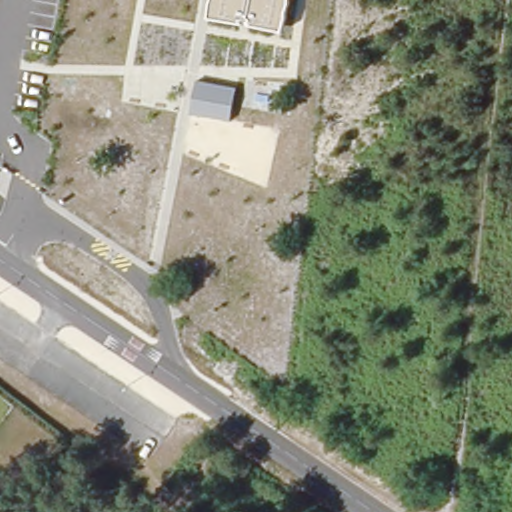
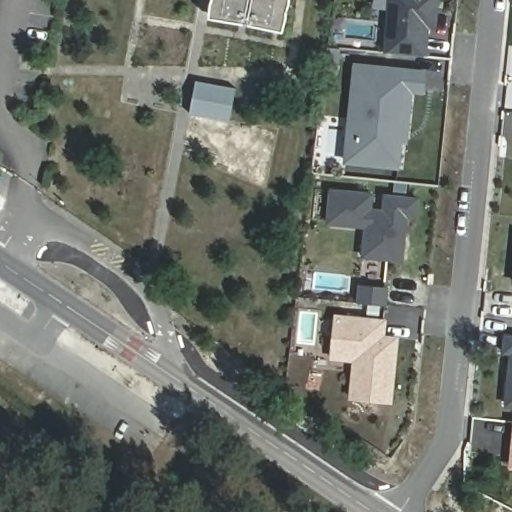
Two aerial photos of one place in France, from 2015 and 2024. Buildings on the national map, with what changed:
unchanged [(208,17),(212,0),(290,0),(284,31),(208,17)]
new [(429,25),(426,57),(388,54),(394,0),(439,0),(437,16),(436,25),(425,24),(429,25)]
new [(350,134),(358,64),(427,72),(425,91),(413,90),(409,131),(408,141),(403,140),(404,131),(400,166),(360,162),(348,161),(350,134)]
unchanged [(237,85),(231,121),(191,114),(199,79),(237,85)]
new [(405,261),(366,258),(368,228),(330,225),(333,191),(374,195),(373,210),(386,211),(387,196),(420,199),(418,217),(409,216),(407,233),(406,243),(405,261)]
new [(362,287),(389,289),(388,306),(360,304),(362,287)]
new [(387,322),(386,338),(400,339),(394,403),(354,399),(357,362),(335,360),(338,318),(387,322)]
new [(508,381),(509,374),(511,353),(503,352),(505,335),(512,336),(512,405),(506,404),(508,381)]

